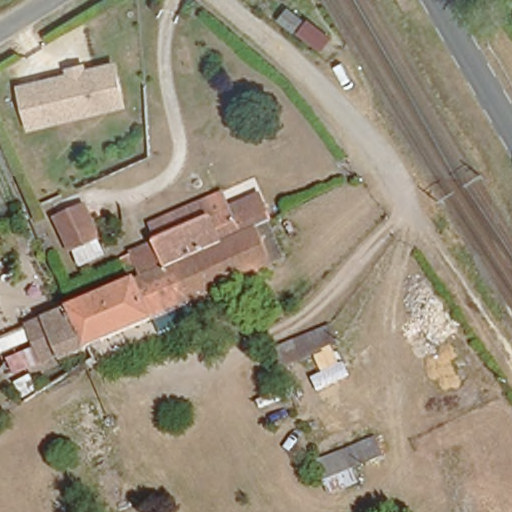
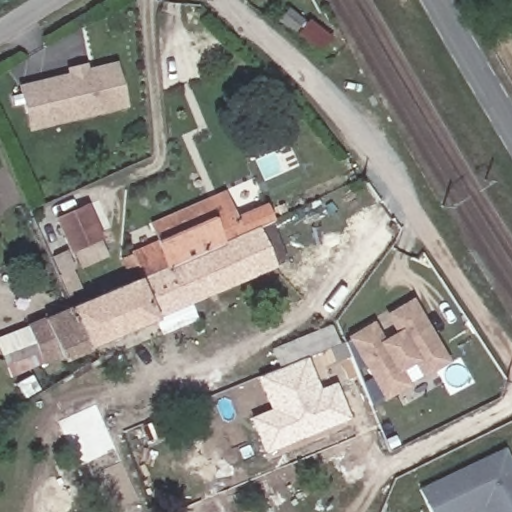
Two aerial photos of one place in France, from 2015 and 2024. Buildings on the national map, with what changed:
unchanged [(29,131),(19,84),(119,61),(129,107),(29,131)]
unchanged [(158,266),(140,276),(129,252),(149,243),(144,232),(163,223),(159,215),(223,185),(230,200),(261,186),(267,199),(273,214),(269,216),(158,266)]
unchanged [(80,205),(93,234),(69,245),(56,216),(80,205)]
unchanged [(289,254),(109,339),(92,298),(140,276),(158,266),(269,216),(273,214),(289,254)]
new [(381,337),(393,331),(383,313),(409,297),(448,361),(420,377),(413,364),(401,370),(409,385),(384,400),(346,335),(372,320),(381,337)]
unchanged [(79,342),(12,372),(0,344),(0,337),(92,298),(109,339),(84,350),(79,342)]
new [(329,326),(336,343),(278,367),(271,351),(329,326)]
new [(319,388),(334,381),(349,417),(264,452),(249,417),(268,408),(255,375),(278,367),(305,356),(319,388)]
demolished [(89,395),(109,440),(73,458),(54,415),(53,411),(89,395)]
new [(416,487),(502,447),(512,468),(512,512),(485,512),(482,505),(468,512),(428,512),(416,487)]
demolished [(122,455),(134,492),(159,486),(161,502),(113,512),(106,512),(93,470),(122,455)]

